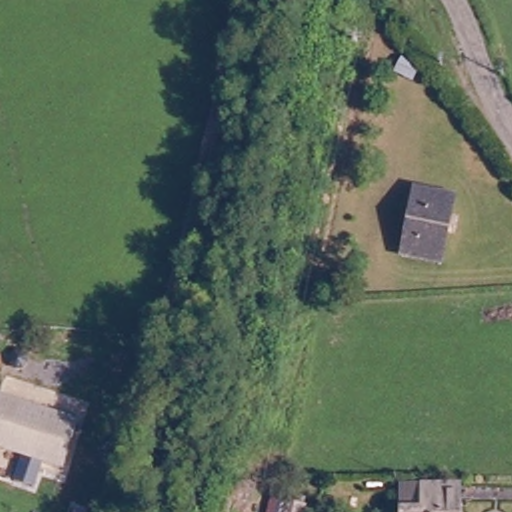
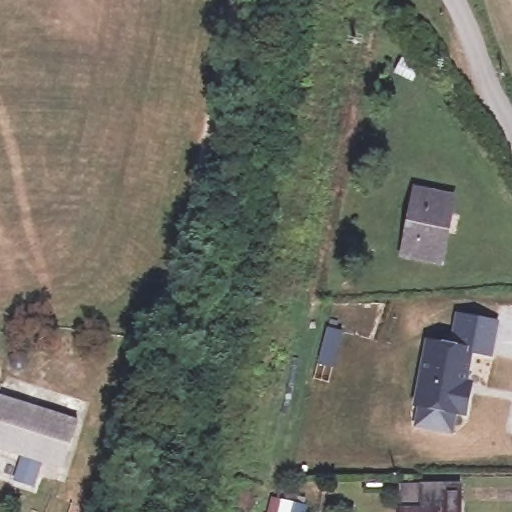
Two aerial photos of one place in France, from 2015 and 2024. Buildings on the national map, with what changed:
unchanged [(440,262),(404,255),(416,195),(453,202),(440,262)]
new [(429,341),(453,345),(459,314),(497,322),(491,352),(471,349),(465,381),(471,382),(466,412),(417,402),(429,341)]
unchanged [(84,428),(62,477),(0,450),(0,417),(10,395),(84,428)]
unchanged [(423,512),(422,480),(460,479),(462,512),(416,512),(423,512)]
new [(312,505),(311,512),(268,512),(271,496),(312,505)]

